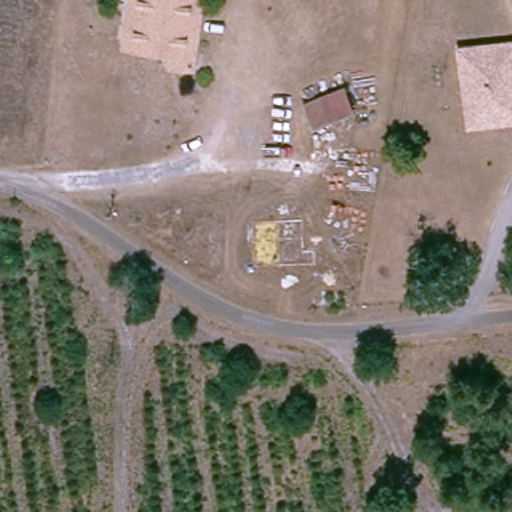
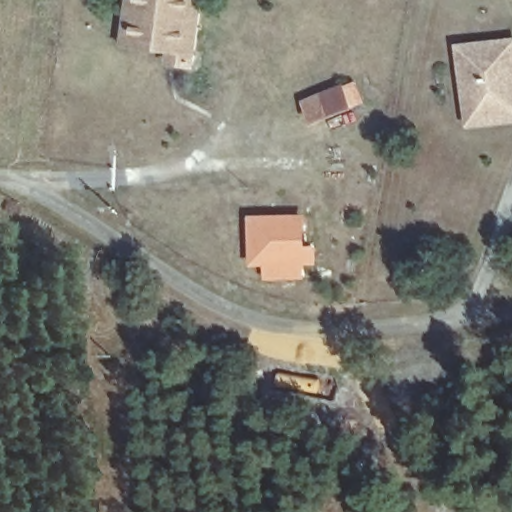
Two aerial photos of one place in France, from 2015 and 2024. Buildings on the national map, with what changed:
unchanged [(168,40),(123,32),(128,0),(200,0),(194,64),(166,61),(168,40)]
unchanged [(464,126),(464,68),(466,46),(512,46),(512,126),(464,126)]
unchanged [(348,87),(354,109),(317,120),(309,98),(348,87)]
new [(302,250),(314,249),(314,265),(302,265),(302,280),(264,281),(264,266),(253,266),(250,220),(301,220),(302,250)]

